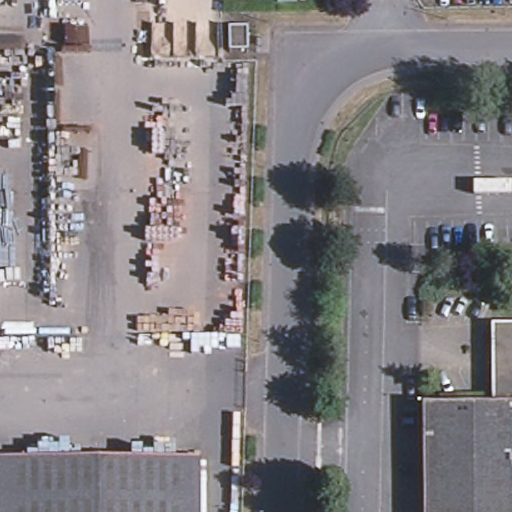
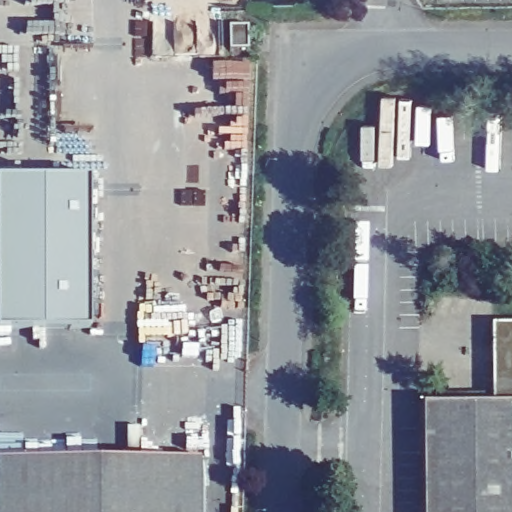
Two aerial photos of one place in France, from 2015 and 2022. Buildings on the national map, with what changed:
unchanged [(246,30),(247,52),(230,53),(230,30),(246,30)]
new [(89,328),(0,328),(0,178),(89,177),(89,328)]
unchanged [(491,330),(512,329),(512,428),(492,429),(492,407),(491,330)]
unchanged [(492,407),(492,429),(512,428),(512,512),(425,512),(424,410),(492,407)]
unchanged [(198,512),(0,512),(0,460),(198,460),(198,512)]

